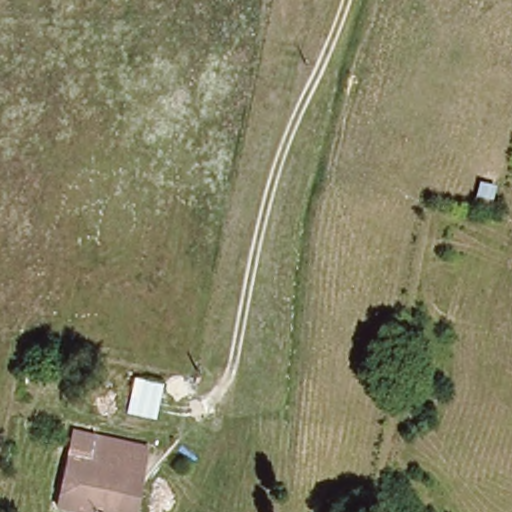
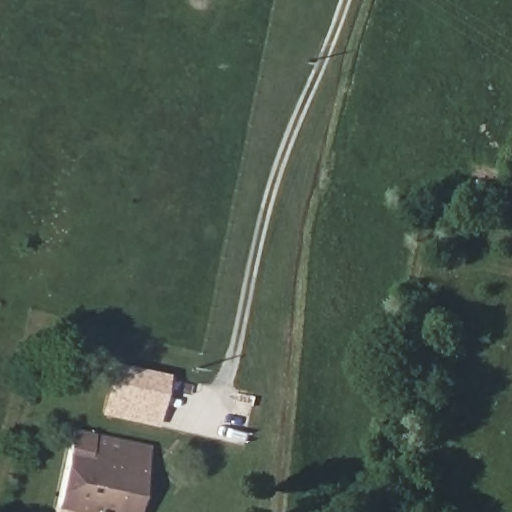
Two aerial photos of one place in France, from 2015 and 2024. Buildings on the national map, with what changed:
new [(168,374),(155,427),(99,415),(111,362),(168,374)]
unchanged [(62,512),(76,425),(146,439),(133,512),(62,512)]

